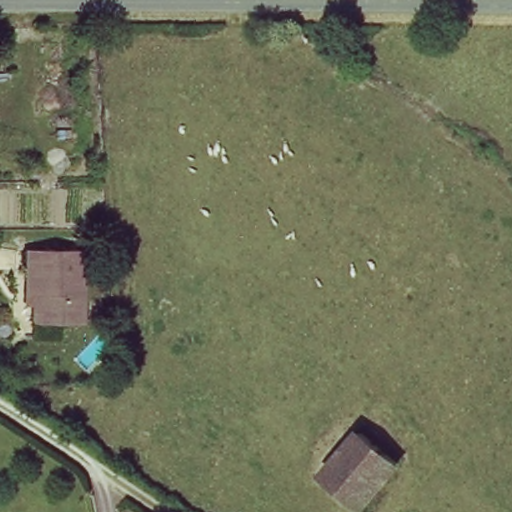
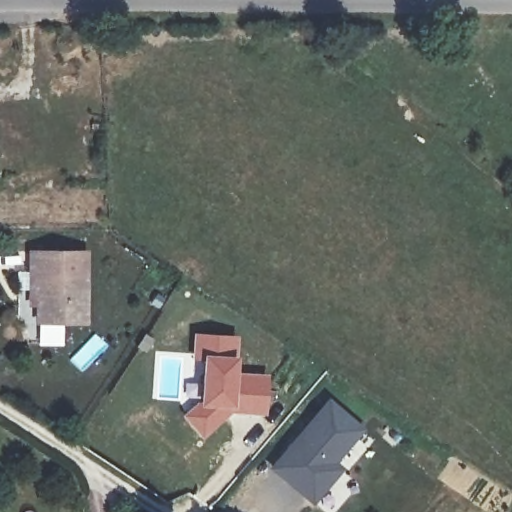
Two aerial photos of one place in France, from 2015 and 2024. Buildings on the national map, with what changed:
unchanged [(83,250),(86,320),(41,321),(40,293),(33,293),(32,273),(31,254),(83,250)]
new [(198,400),(200,357),(192,356),(193,332),(238,335),(237,371),(271,374),(268,415),(230,414),(203,439),(181,416),(198,400)]
new [(361,431),(335,461),(342,468),(315,503),(273,471),(279,461),(272,456),(321,399),(361,431)]
demolished [(359,508),(342,495),(322,478),(359,434),(396,462),(359,508)]

